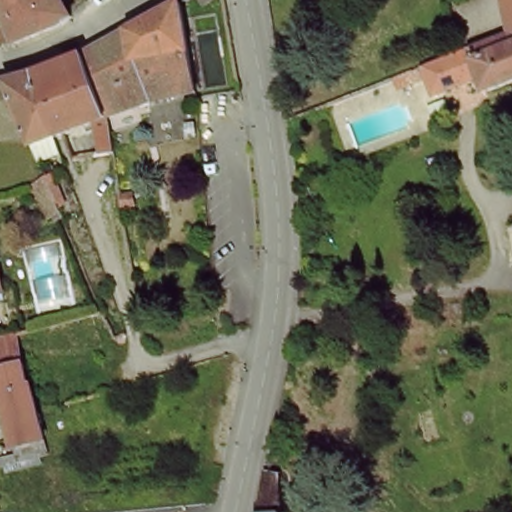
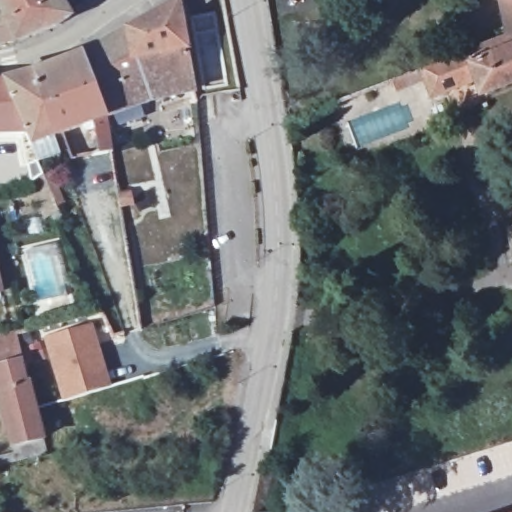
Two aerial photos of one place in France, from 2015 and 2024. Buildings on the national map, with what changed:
unchanged [(2,47),(0,36),(0,28),(9,26),(1,4),(2,2),(0,0),(62,0),(72,18),(60,26),(50,30),(48,31),(17,42),(2,47)]
unchanged [(186,88),(156,92),(99,112),(76,50),(128,19),(167,0),(171,0),(185,84),(186,88)]
unchanged [(196,82),(185,84),(171,0),(183,0),(196,82)]
unchanged [(504,0),(512,0),(512,34),(511,34),(504,0)]
unchanged [(482,77),(435,95),(425,69),(435,65),(467,52),(465,44),(470,43),(472,50),(480,47),(492,42),(511,34),(512,34),(512,83),(488,93),(482,77)]
unchanged [(100,118),(109,181),(92,183),(85,153),(63,155),(56,128),(44,132),(26,69),(76,50),(99,112),(100,118)]
unchanged [(26,69),(44,132),(22,139),(18,129),(0,89),(0,77),(26,69)]
unchanged [(18,129),(0,131),(0,89),(18,129)]
unchanged [(449,153),(444,138),(450,135),(453,138),(457,150),(449,153)]
unchanged [(56,219),(54,215),(48,217),(33,183),(46,176),(64,216),(56,219)]
unchanged [(123,198),(112,200),(110,189),(109,187),(117,186),(122,186),(123,198)]
unchanged [(512,230),(512,268),(502,232),(512,230)]
unchanged [(3,293),(0,294),(0,280),(3,293)]
new [(92,320),(112,387),(61,402),(40,335),(92,320)]
unchanged [(9,415),(1,391),(0,391),(0,333),(16,329),(29,382),(32,381),(38,406),(9,415)]
unchanged [(38,406),(48,446),(27,452),(2,459),(0,453),(0,450),(15,446),(9,415),(38,406)]
unchanged [(268,472),(271,472),(281,475),(281,512),(259,512),(264,492),(268,472)]

